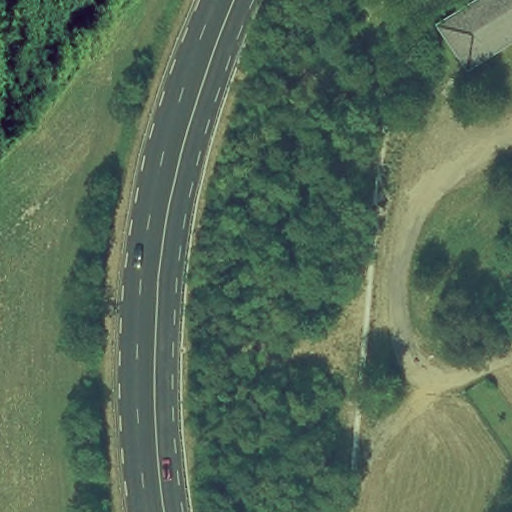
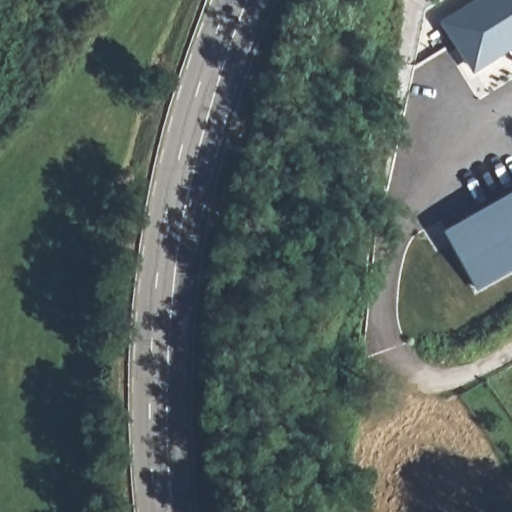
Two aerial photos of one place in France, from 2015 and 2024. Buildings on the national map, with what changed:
unchanged [(449,24),(460,16),(486,0),(512,0),(512,45),(490,60),(477,68),(449,26),(449,24)]
new [(512,272),(477,292),(440,230),(512,189),(512,272)]

